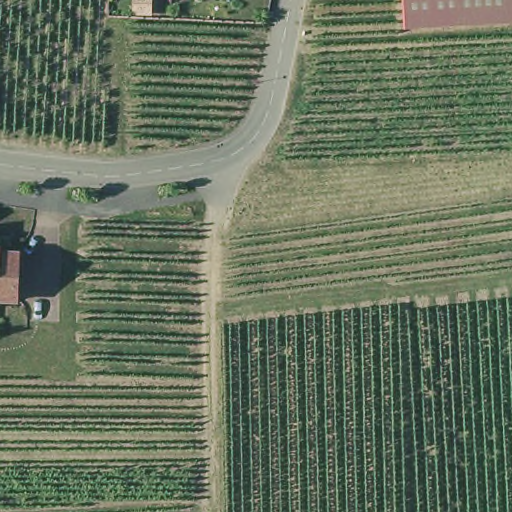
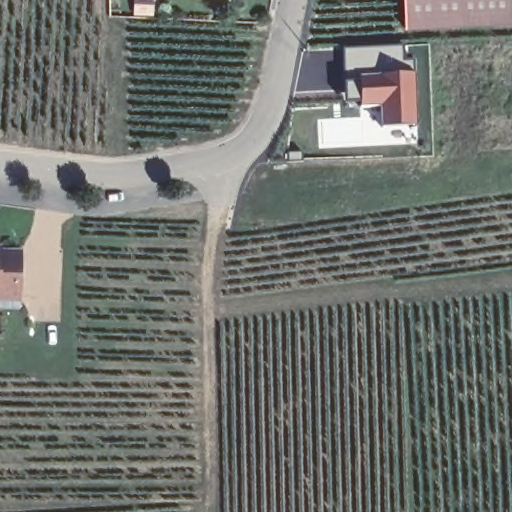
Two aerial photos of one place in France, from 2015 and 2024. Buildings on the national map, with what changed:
unchanged [(403,28),(401,0),(508,0),(509,21),(403,28)]
unchanged [(508,0),(512,0),(512,21),(509,21),(508,0)]
new [(413,71),(417,124),(382,126),(380,107),(360,107),(358,75),(413,71)]
unchanged [(21,248),(21,265),(20,283),(18,283),(17,298),(0,298),(0,248),(21,248)]

